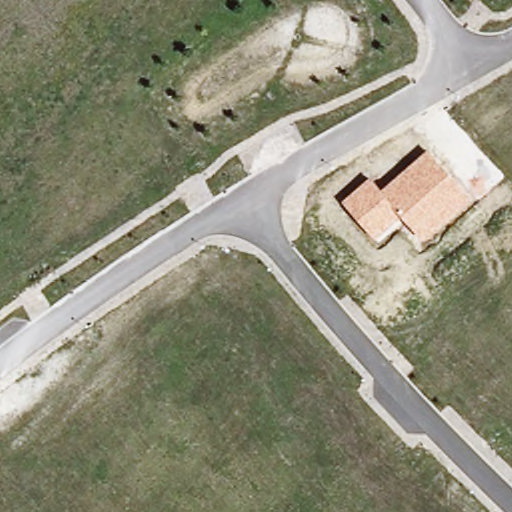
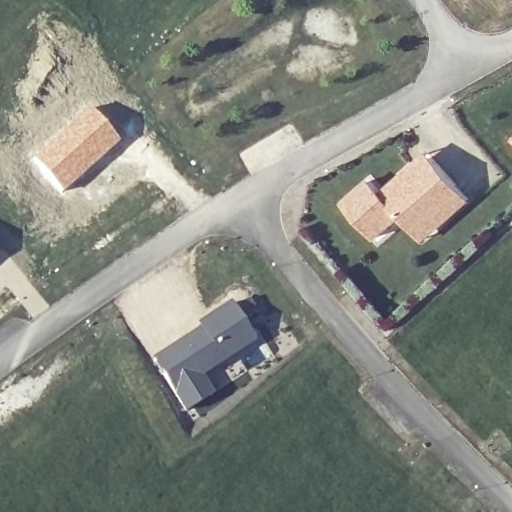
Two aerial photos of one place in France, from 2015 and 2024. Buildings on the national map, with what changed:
new [(88,107),(119,141),(62,190),(33,157),(88,107)]
unchanged [(469,201),(422,241),(403,218),(377,240),(343,202),(369,180),(382,192),(428,152),(469,201)]
new [(235,307),(258,342),(203,377),(215,397),(189,413),(155,358),(235,307)]

